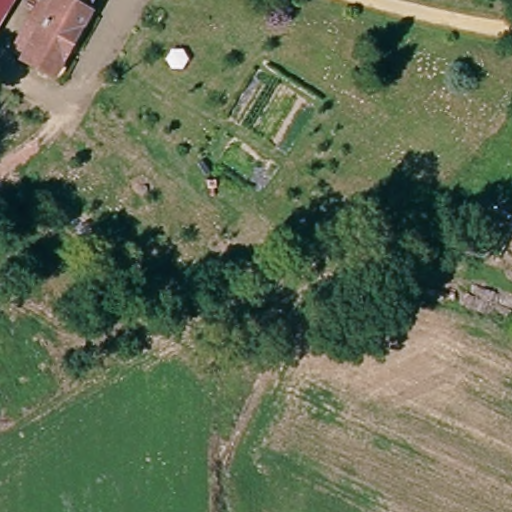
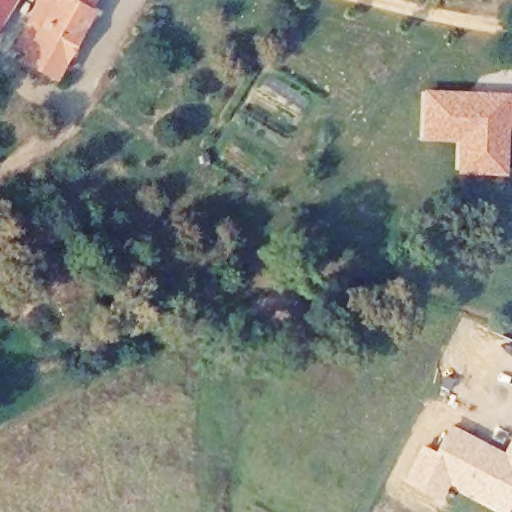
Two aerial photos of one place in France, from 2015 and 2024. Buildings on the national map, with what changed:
unchanged [(15,0),(0,31),(0,0),(15,0)]
unchanged [(29,60),(36,46),(18,36),(28,15),(45,23),(55,0),(80,0),(80,1),(96,10),(61,76),(29,60)]
unchanged [(28,15),(35,0),(55,0),(45,23),(28,15)]
unchanged [(80,1),(80,0),(101,0),(96,10),(80,1)]
new [(512,126),(508,126),(507,175),(457,174),(458,141),(423,139),(423,90),(512,94),(512,126)]
new [(450,423),(502,451),(512,432),(512,502),(507,512),(503,512),(451,482),(440,500),(402,481),(421,444),(434,452),(450,423)]

